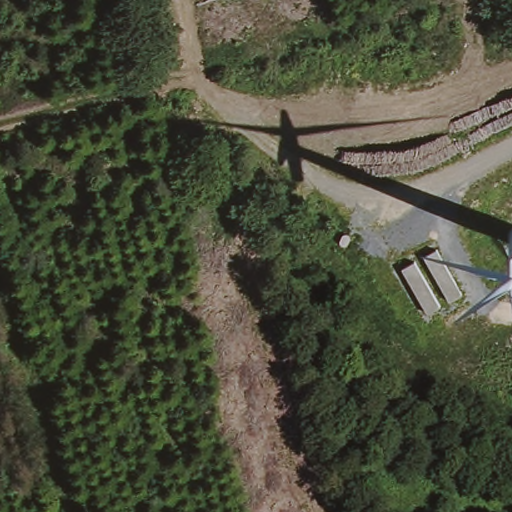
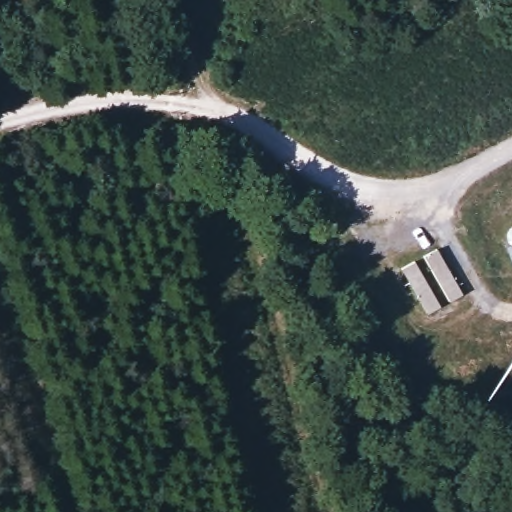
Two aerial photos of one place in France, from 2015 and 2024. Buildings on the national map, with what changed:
unchanged [(437,249),(462,294),(450,302),(423,257),(437,249)]
unchanged [(401,268),(413,262),(440,307),(428,315),(401,268)]

